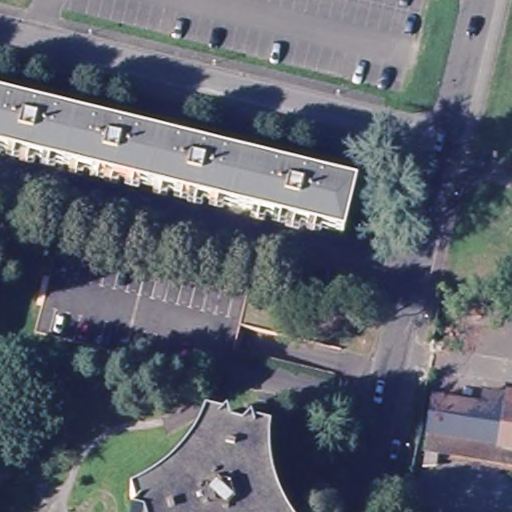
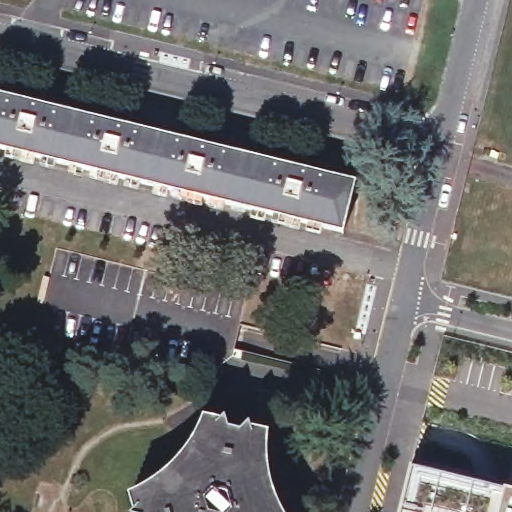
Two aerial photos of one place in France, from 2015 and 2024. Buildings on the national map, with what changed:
unchanged [(354,180),(340,234),(0,149),(0,92),(354,180)]
demolished [(436,402),(485,411),(488,395),(512,399),(512,452),(430,438),(436,402)]
unchanged [(236,434),(245,426),(250,438),(259,440),(258,450),(260,461),(263,475),(266,487),(270,501),(276,512),(137,512),(135,502),(143,497),(153,490),(164,483),(179,468),(189,455),(198,440),(203,428),(213,430),(221,421),(224,430),(236,434)]
new [(512,491),(512,512),(400,512),(411,467),(505,490),(512,491)]

